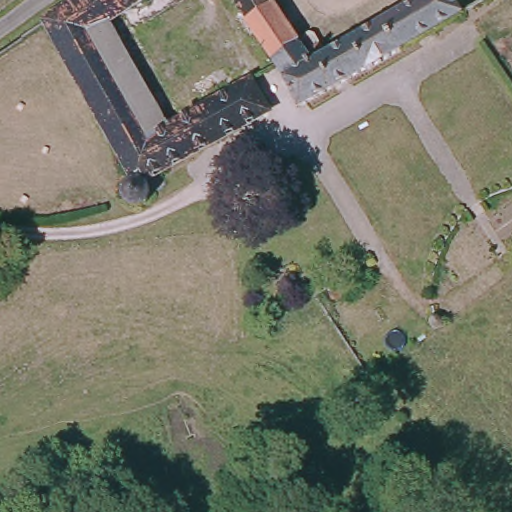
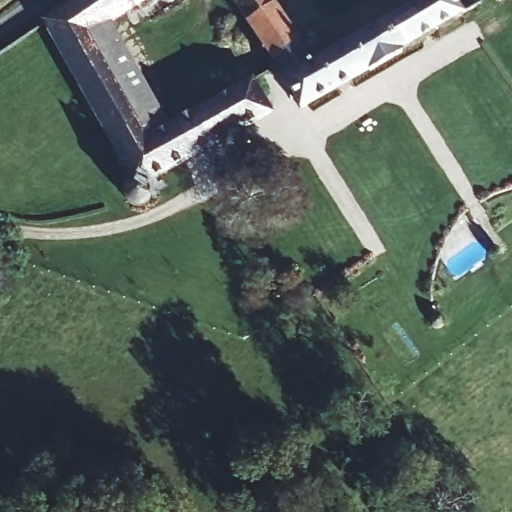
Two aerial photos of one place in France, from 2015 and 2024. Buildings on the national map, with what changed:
unchanged [(147,194),(145,199),(139,204),(131,205),(122,205),(120,199),(118,190),(118,181),(124,177),(40,19),(67,0),(143,0),(110,22),(166,121),(247,73),(272,111),(147,180),(147,194)]
unchanged [(273,0),(312,59),(425,0),(452,0),(461,14),(300,103),(231,0),(273,0)]

